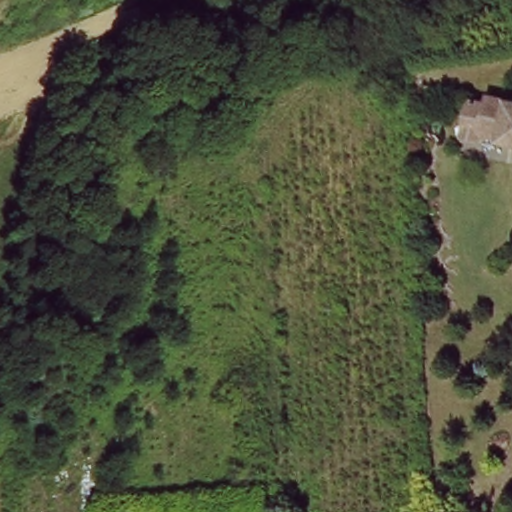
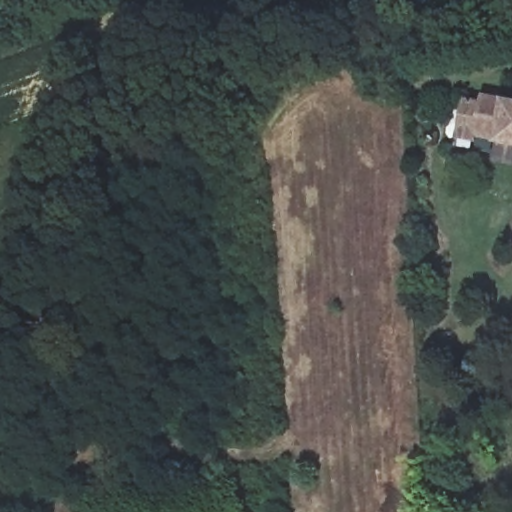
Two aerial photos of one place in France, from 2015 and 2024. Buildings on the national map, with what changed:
unchanged [(503,147),(504,137),(481,136),(481,146),(462,145),(461,107),(481,108),(482,97),(512,100),(512,147),(503,147)]

